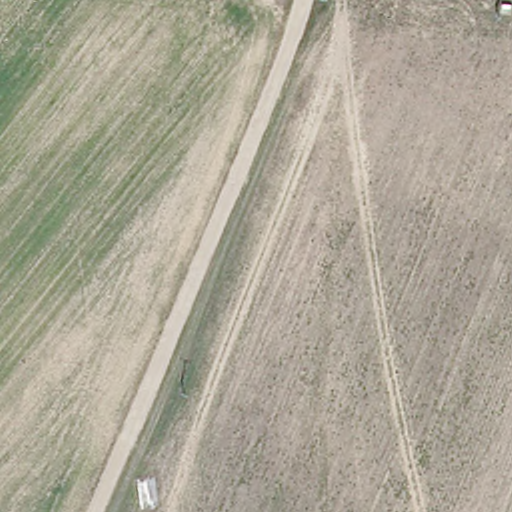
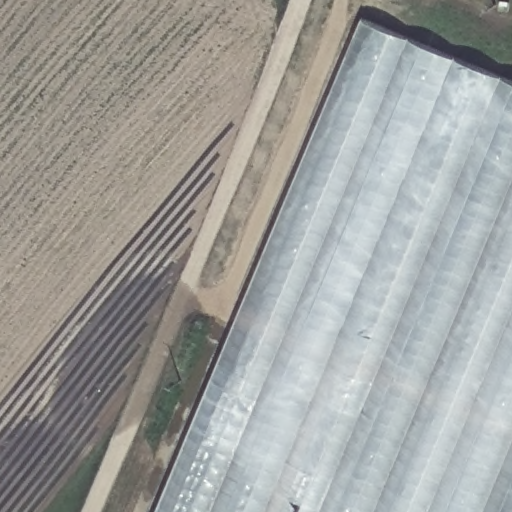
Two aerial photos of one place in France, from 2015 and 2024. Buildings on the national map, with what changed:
new [(156,512),(366,17),(512,79),(512,512),(156,512)]

